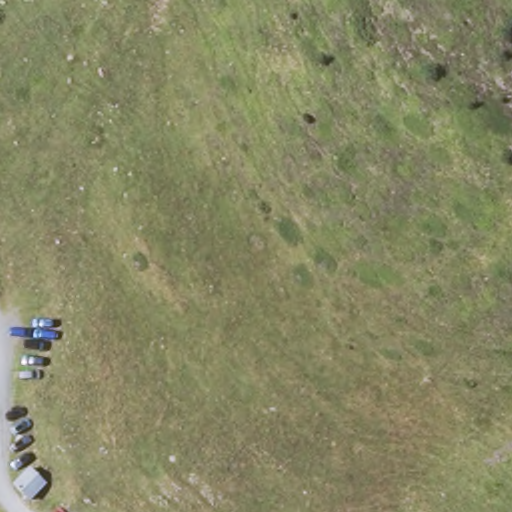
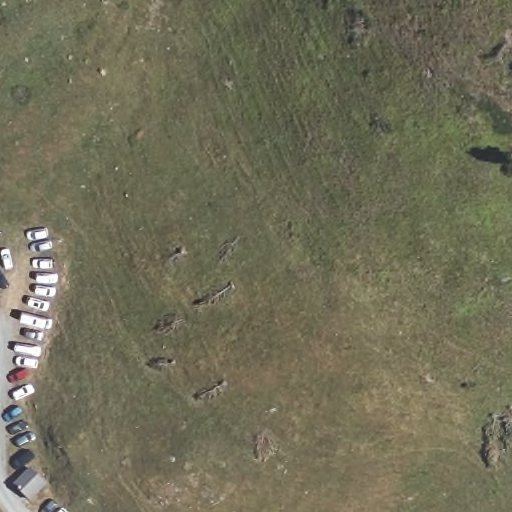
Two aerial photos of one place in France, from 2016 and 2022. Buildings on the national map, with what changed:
unchanged [(42,490),(26,505),(7,488),(25,470),(42,490)]

